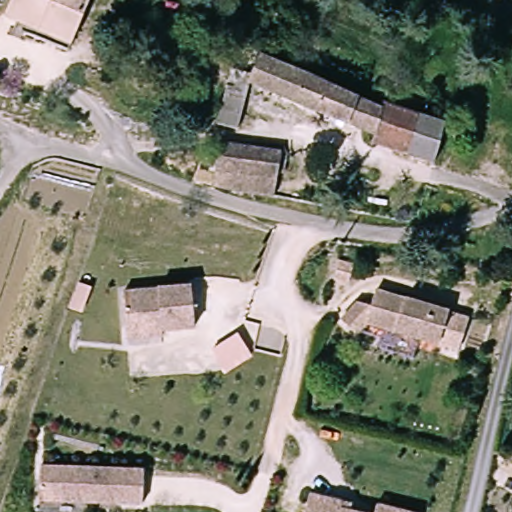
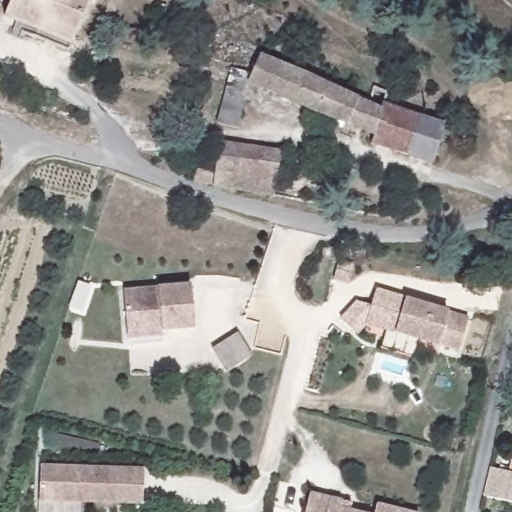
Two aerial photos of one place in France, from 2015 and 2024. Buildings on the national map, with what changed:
unchanged [(34,39),(35,31),(4,20),(12,0),(91,0),(71,54),(34,39)]
unchanged [(230,76),(252,84),(266,55),(396,109),(393,115),(424,130),(410,160),(377,147),(380,141),(255,90),(244,135),(218,127),(230,76)]
unchanged [(455,130),(439,170),(410,160),(424,130),(393,115),(396,109),(455,130)]
unchanged [(222,145),(284,158),(281,177),(218,164),(222,145)]
unchanged [(218,164),(281,177),(278,195),(215,182),(218,164)]
unchanged [(124,337),(123,330),(119,290),(186,283),(190,325),(158,330),(158,335),(124,337)]
unchanged [(445,311),(466,317),(457,350),(437,344),(364,323),(354,335),(339,321),(355,303),(369,306),(373,291),(445,311)]
unchanged [(250,355),(226,372),(212,351),(237,333),(250,355)]
unchanged [(140,504),(115,503),(37,502),(37,467),(116,468),(141,469),(140,504)]
new [(485,496),(492,469),(512,474),(512,502),(485,496)]
unchanged [(340,501),(350,503),(348,510),(354,512),(303,512),(308,493),(340,501)]
unchanged [(405,512),(373,512),(375,504),(405,512)]

